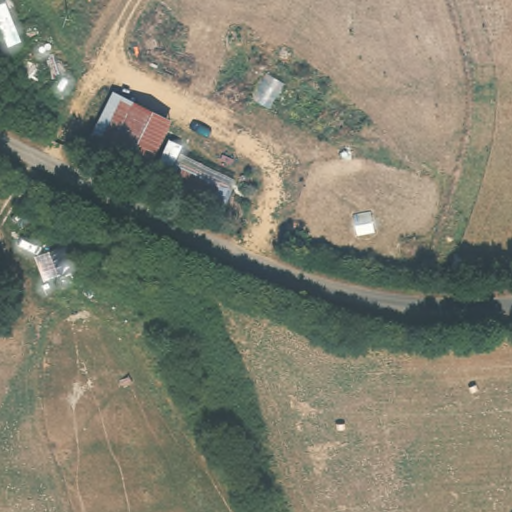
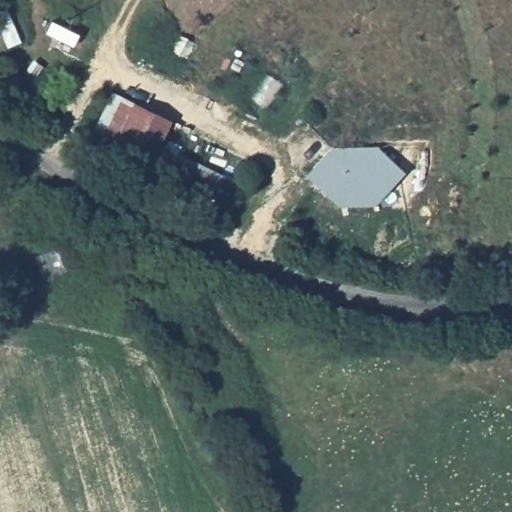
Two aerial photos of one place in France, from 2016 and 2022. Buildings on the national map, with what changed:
unchanged [(151,165),(88,136),(112,93),(172,122),(151,165)]
unchanged [(223,209),(151,176),(168,141),(184,148),(180,155),(236,184),(223,209)]
new [(376,206),(336,206),(305,175),(334,147),(381,147),(406,173),(376,206)]

